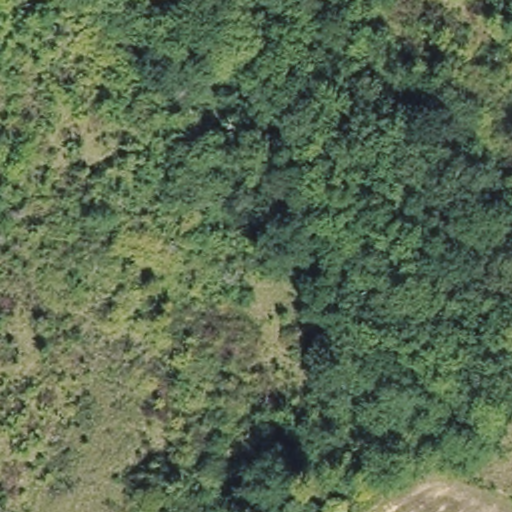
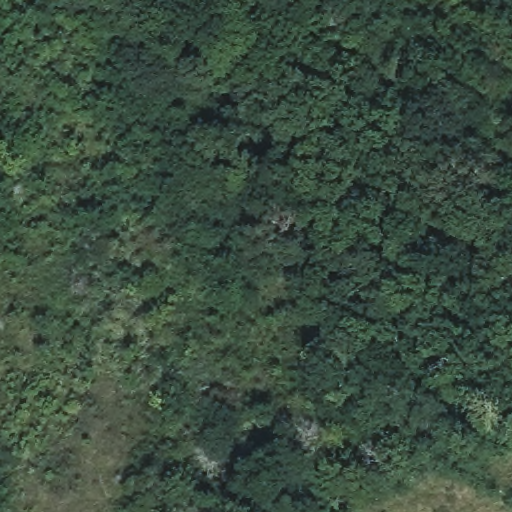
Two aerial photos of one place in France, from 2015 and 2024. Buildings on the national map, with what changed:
[]

